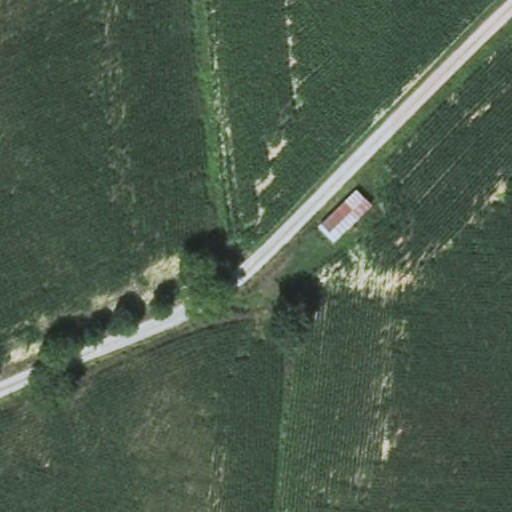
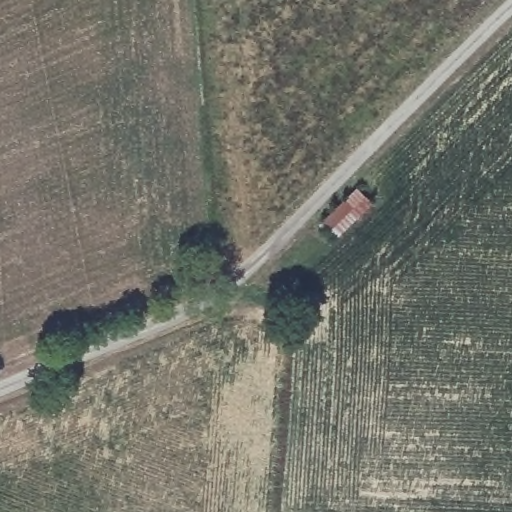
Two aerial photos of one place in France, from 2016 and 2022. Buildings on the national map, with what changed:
unchanged [(336,239),(320,222),(357,187),(376,203),(336,239)]

